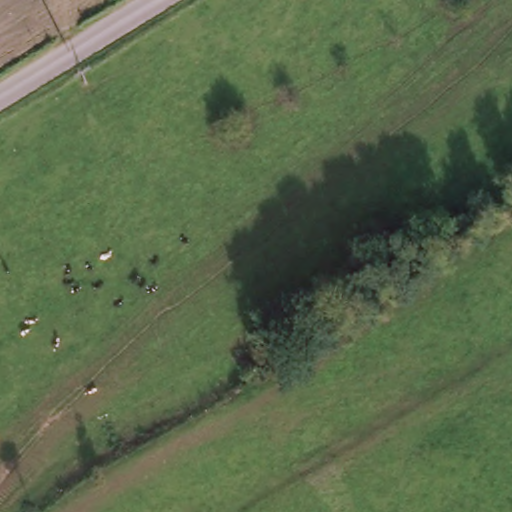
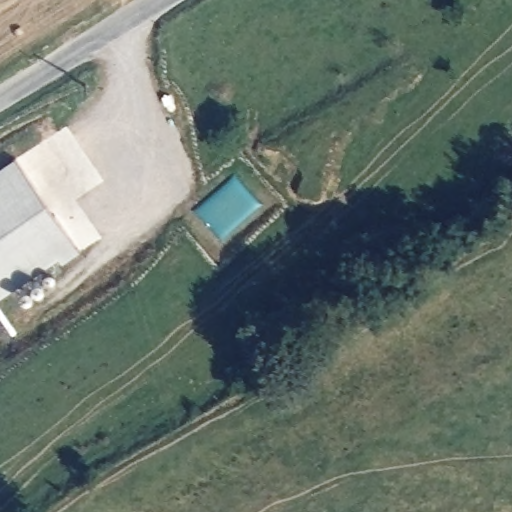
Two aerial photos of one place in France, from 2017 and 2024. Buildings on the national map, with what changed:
new [(77,249),(58,262),(53,254),(0,289),(0,165),(13,155),(77,249)]

